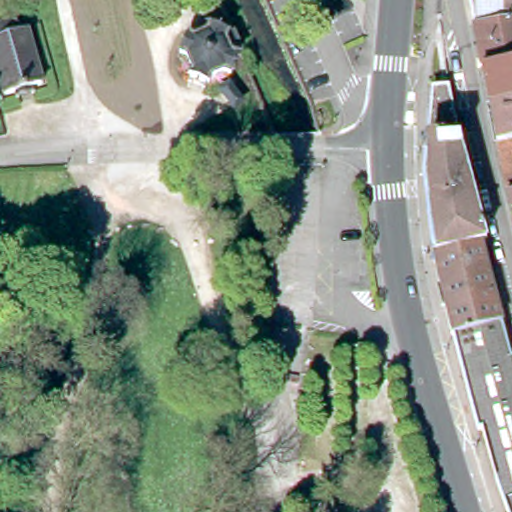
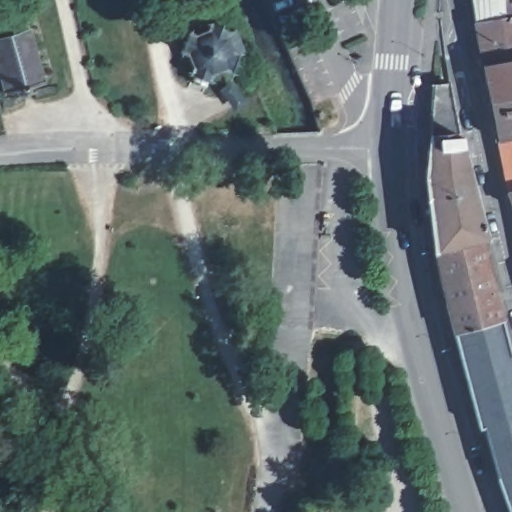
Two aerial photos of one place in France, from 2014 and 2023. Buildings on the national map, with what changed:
unchanged [(476,17),(472,0),(512,0),(512,11),(476,17)]
unchanged [(476,17),(512,11),(512,55),(484,60),(476,17)]
unchanged [(192,77),(195,71),(197,65),(198,62),(194,52),(185,48),(186,47),(194,26),(197,27),(203,30),(205,29),(215,25),(217,20),(237,27),(235,35),(239,44),(245,47),(238,67),(232,66),(220,72),(217,79),(213,77),(210,85),(192,77)]
unchanged [(20,98),(18,91),(8,94),(0,61),(0,23),(4,26),(7,22),(17,22),(23,31),(28,30),(43,84),(33,87),(35,94),(20,98)]
unchanged [(492,98),(484,60),(512,55),(512,94),(492,98)]
unchanged [(237,76),(252,97),(240,106),(225,85),(237,76)]
unchanged [(460,135),(450,137),(452,147),(428,148),(432,83),(449,81),(460,135)]
unchanged [(492,98),(512,94),(512,134),(499,137),(492,98)]
unchanged [(509,187),(499,137),(512,134),(512,186),(509,187)]
unchanged [(425,176),(428,148),(452,147),(450,137),(460,135),(463,152),(487,239),(480,241),(435,252),(425,176)]
unchanged [(509,187),(512,186),(512,195),(509,187)]
unchanged [(435,252),(480,241),(502,319),(455,333),(435,252)]
unchanged [(509,512),(502,493),(484,427),(480,428),(455,333),(502,319),(512,357),(512,512),(509,512)]

